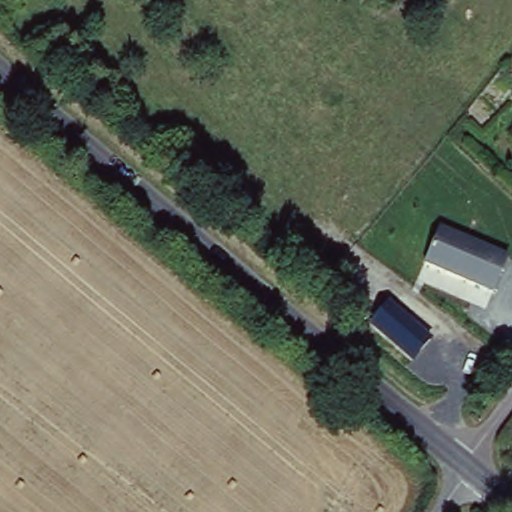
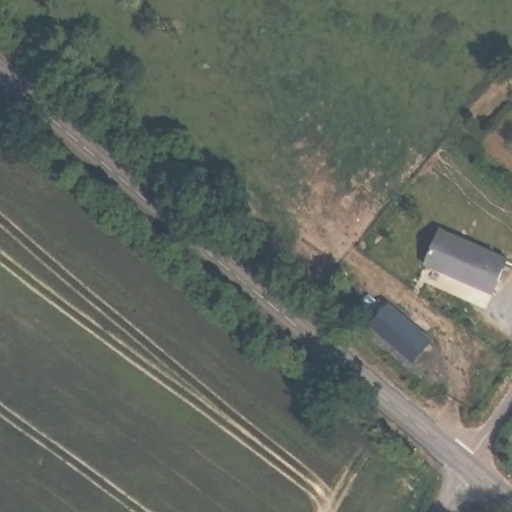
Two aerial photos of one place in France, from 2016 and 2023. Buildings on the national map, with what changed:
unchanged [(505,258),(491,296),(420,269),(434,231),(505,258)]
unchanged [(432,338),(412,364),(367,329),(387,302),(432,338)]

